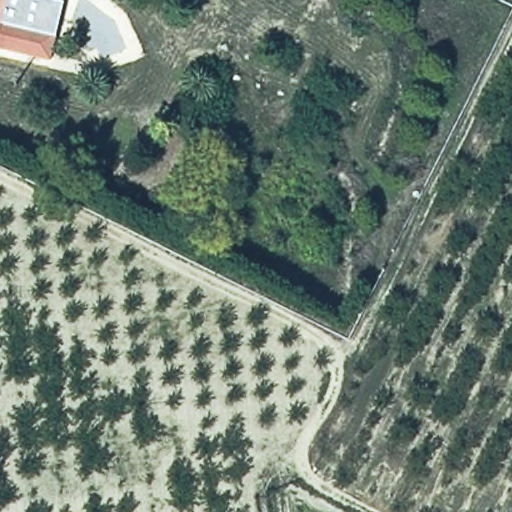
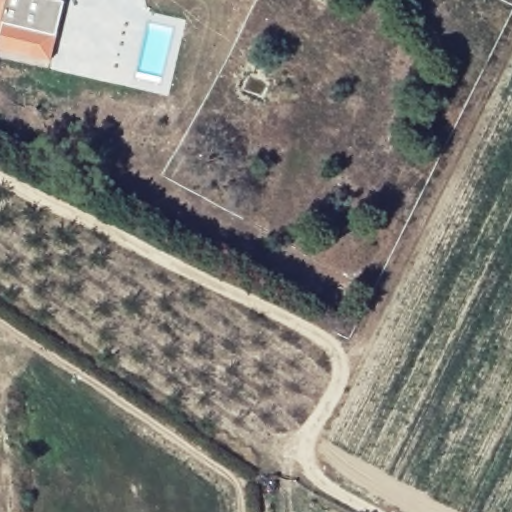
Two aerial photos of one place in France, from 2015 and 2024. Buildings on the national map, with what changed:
unchanged [(57,33),(51,60),(0,49),(0,0),(5,0),(1,21),(57,33)]

